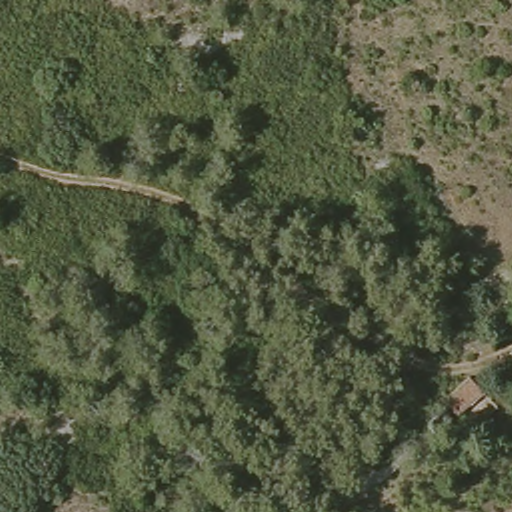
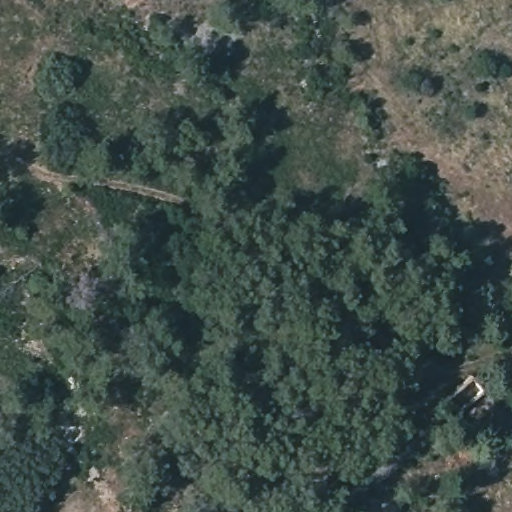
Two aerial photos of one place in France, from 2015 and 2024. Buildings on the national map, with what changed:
unchanged [(220,248),(202,276),(191,268),(208,240),(220,248)]
unchanged [(459,406),(447,393),(469,373),(472,372),(483,385),(459,406)]

